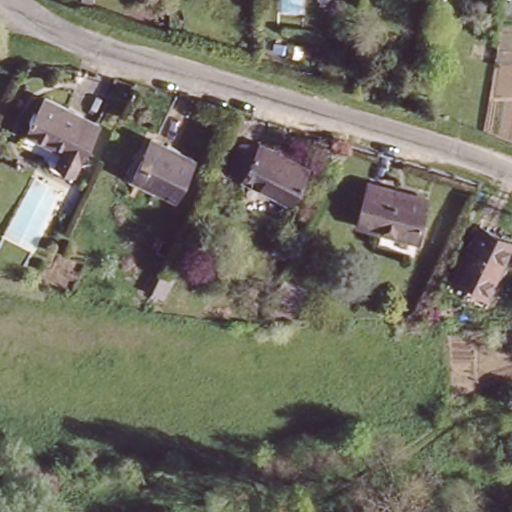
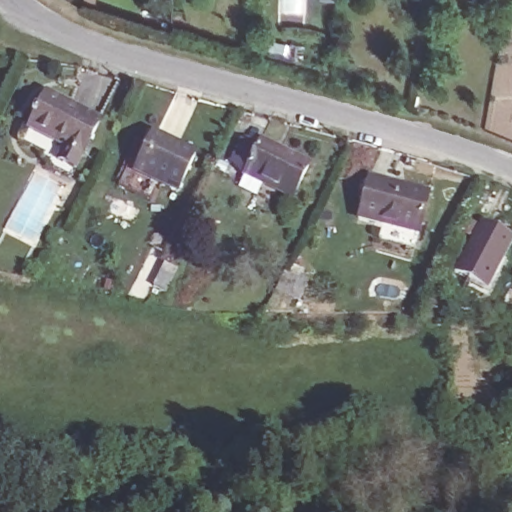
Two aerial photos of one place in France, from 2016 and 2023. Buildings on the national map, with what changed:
unchanged [(59,161),(67,145),(32,130),(47,97),(99,120),(77,169),(59,161)]
unchanged [(152,129),(195,150),(177,187),(134,167),(152,129)]
unchanged [(304,202),(257,181),(259,177),(243,170),(257,141),(273,148),(319,169),(304,202)]
unchanged [(368,182),(426,196),(417,233),(358,218),(368,182)]
unchanged [(457,273),(482,224),(512,238),(512,246),(491,291),(457,273)]
unchanged [(162,277),(173,256),(185,261),(176,282),(162,277)]
unchanged [(272,297),(280,281),(302,291),(296,307),(272,297)]

